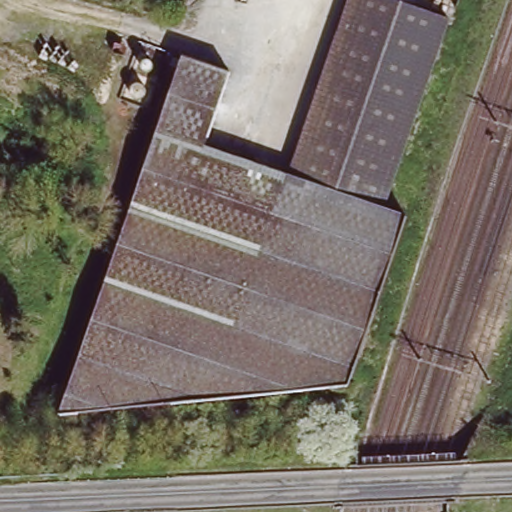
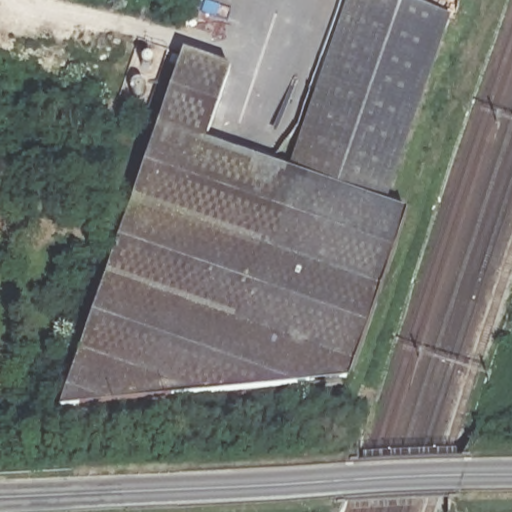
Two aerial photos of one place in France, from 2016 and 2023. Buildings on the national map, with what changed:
unchanged [(330,385),(59,411),(126,215),(168,219),(210,61),(228,67),(203,142),(288,170),(347,0),(405,0),(446,15),(382,205),(387,206),(398,210),(405,213),(394,240),(338,390),(326,395),(330,385)]
unchanged [(126,215),(181,51),(210,61),(168,219),(126,215)]

